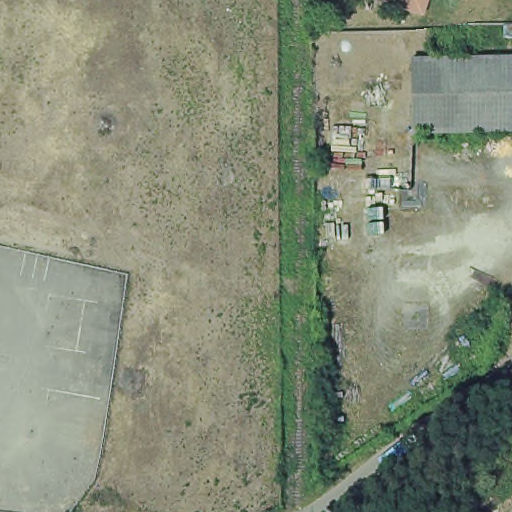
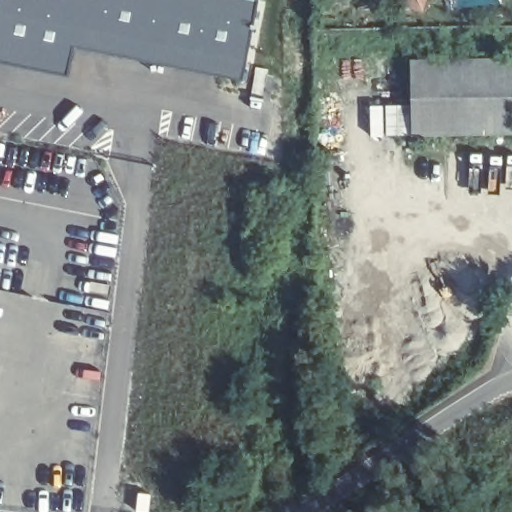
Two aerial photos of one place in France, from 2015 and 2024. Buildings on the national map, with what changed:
new [(70,45),(65,73),(0,59),(0,0),(255,0),(241,79),(70,45)]
unchanged [(405,59),(506,57),(507,132),(407,134),(405,59)]

